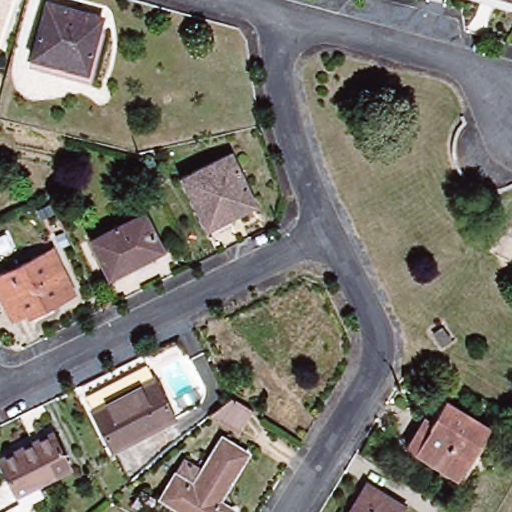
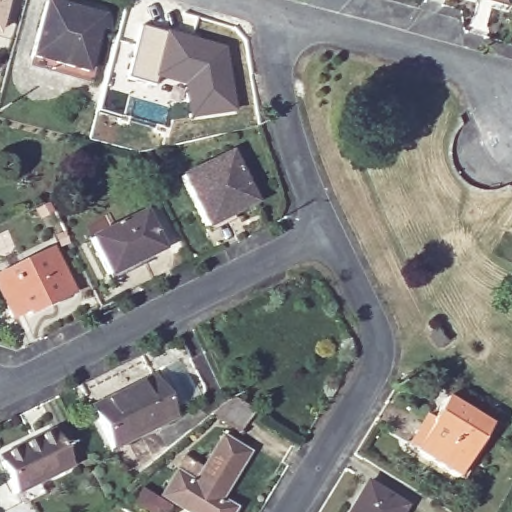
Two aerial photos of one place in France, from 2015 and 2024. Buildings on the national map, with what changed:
unchanged [(0,0),(5,0),(0,19),(0,0)]
unchanged [(481,0),(512,0),(512,9),(481,0)]
unchanged [(93,75),(33,59),(48,3),(108,19),(93,75)]
new [(139,25),(227,44),(235,113),(184,120),(177,88),(153,83),(151,86),(124,79),(139,25)]
unchanged [(252,204),(205,228),(181,179),(229,155),(252,204)]
unchanged [(51,215),(39,221),(36,214),(48,209),(51,215)]
unchanged [(111,278),(93,240),(143,214),(162,251),(111,278)]
unchanged [(21,310),(6,317),(0,302),(0,275),(49,252),(68,292),(23,314),(21,310)]
unchanged [(456,332),(446,339),(438,328),(448,321),(456,332)]
unchanged [(104,452),(84,412),(151,379),(170,419),(104,452)]
unchanged [(457,479),(414,452),(431,426),(430,422),(444,401),(487,428),(457,479)]
unchanged [(230,403),(250,414),(236,439),(206,422),(230,403)]
unchanged [(16,494),(0,461),(0,457),(49,433),(67,467),(16,494)]
unchanged [(215,501),(233,512),(185,512),(159,497),(180,459),(199,471),(219,438),(244,454),(215,501)]
unchanged [(404,508),(402,512),(351,512),(349,511),(364,484),(404,508)]

